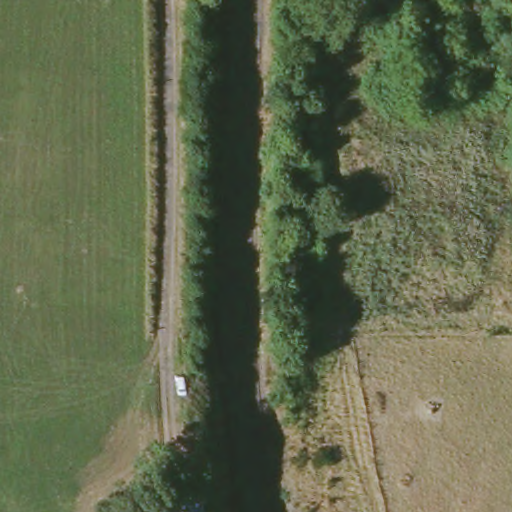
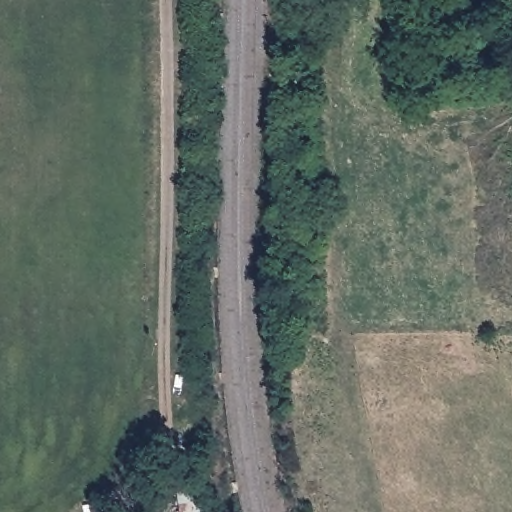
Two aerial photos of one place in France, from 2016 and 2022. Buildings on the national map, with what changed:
unchanged [(178,512),(176,481),(200,478),(204,512),(178,512)]

